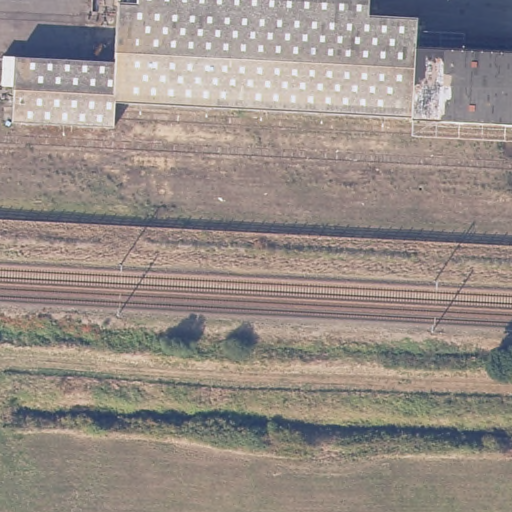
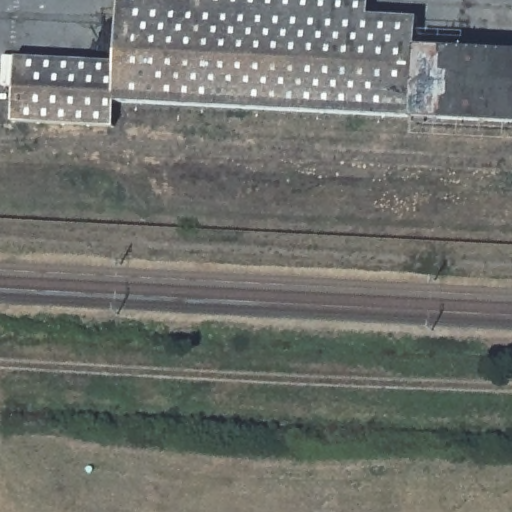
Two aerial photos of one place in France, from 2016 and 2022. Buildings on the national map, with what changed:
unchanged [(114,60),(115,0),(367,0),(366,9),(420,13),(418,27),(415,40),(512,46),(512,123),(411,117),(394,116),(114,104),(112,125),(10,121),(12,54),(114,60)]

